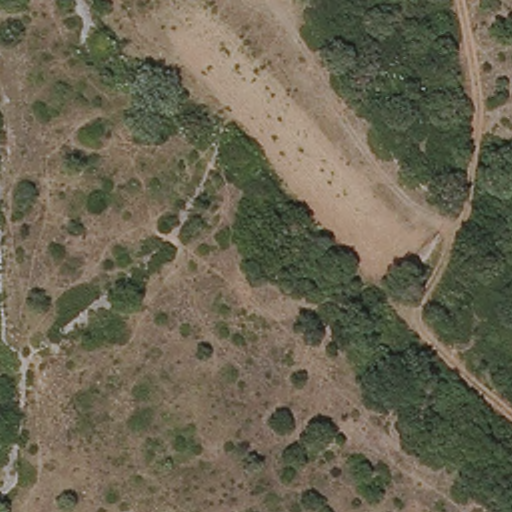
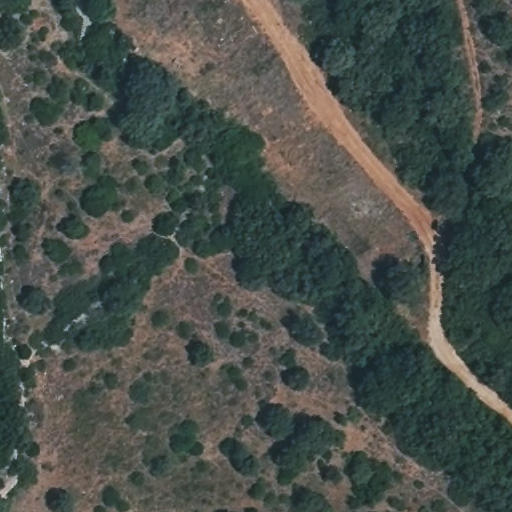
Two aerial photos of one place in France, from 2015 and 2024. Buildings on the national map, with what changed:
[]

